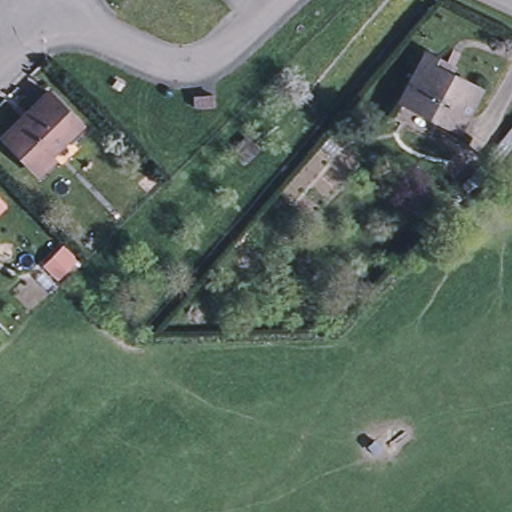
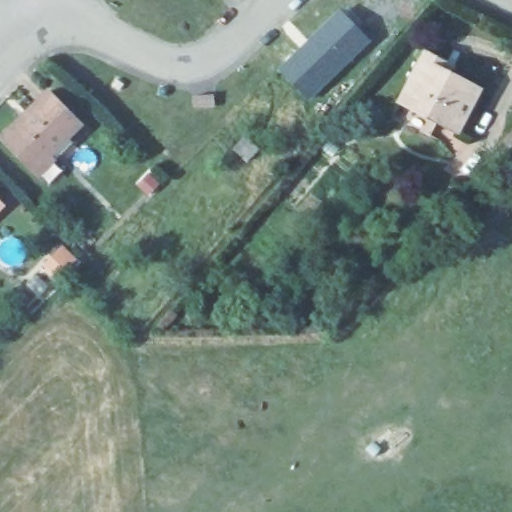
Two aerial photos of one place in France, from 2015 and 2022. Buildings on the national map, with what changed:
new [(370,41),(312,100),(280,69),(340,10),(370,41)]
unchanged [(422,56),(480,89),(455,133),(398,101),(422,56)]
unchanged [(40,174),(35,170),(5,137),(50,93),(82,126),(52,154),(57,159),(40,174)]
unchanged [(0,212),(0,205),(3,208),(0,212)]
unchanged [(63,246),(77,259),(55,280),(40,266),(63,246)]

